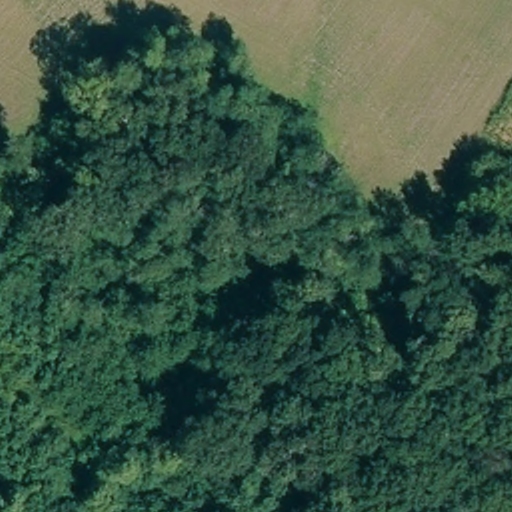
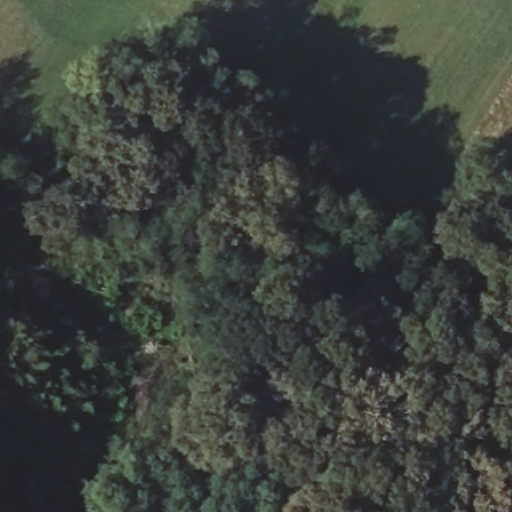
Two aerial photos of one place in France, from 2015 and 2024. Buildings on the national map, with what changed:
[]

